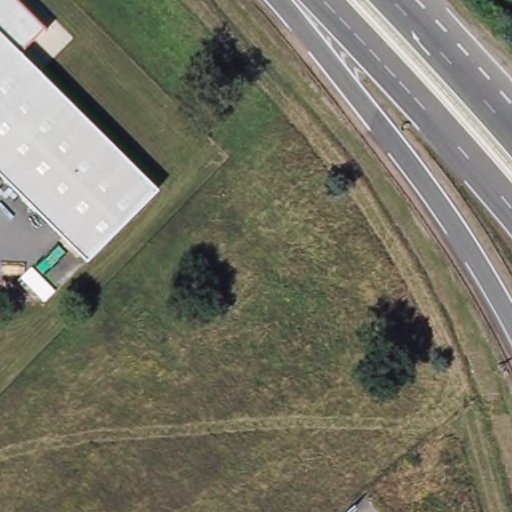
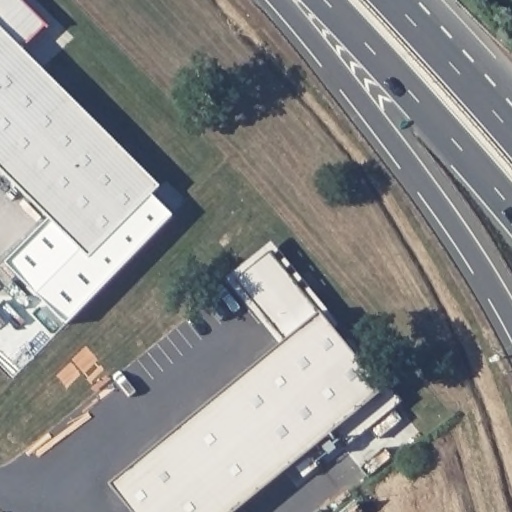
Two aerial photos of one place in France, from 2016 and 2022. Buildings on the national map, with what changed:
unchanged [(23,51),(160,186),(89,259),(0,170),(0,0),(21,0),(47,26),(23,51)]
new [(109,485),(281,346),(225,280),(271,242),(401,403),(348,447),(333,432),(236,512),(131,512),(109,485)]

